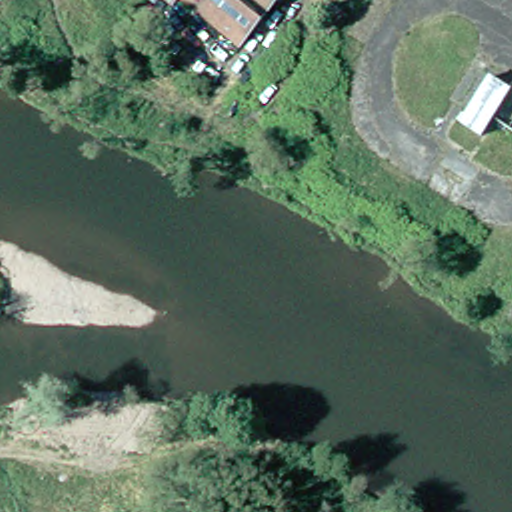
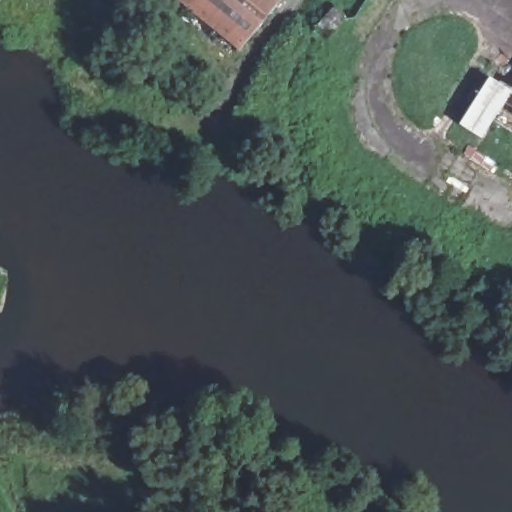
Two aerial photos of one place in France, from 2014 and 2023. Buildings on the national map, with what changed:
unchanged [(184,0),(286,0),(244,50),(184,0)]
unchanged [(325,29),(313,18),(330,0),(332,0),(342,10),(325,29)]
unchanged [(496,119),(482,141),(462,128),(490,83),(510,95),(496,119)]
unchanged [(510,95),(512,96),(512,95),(512,128),(496,119),(510,95)]

